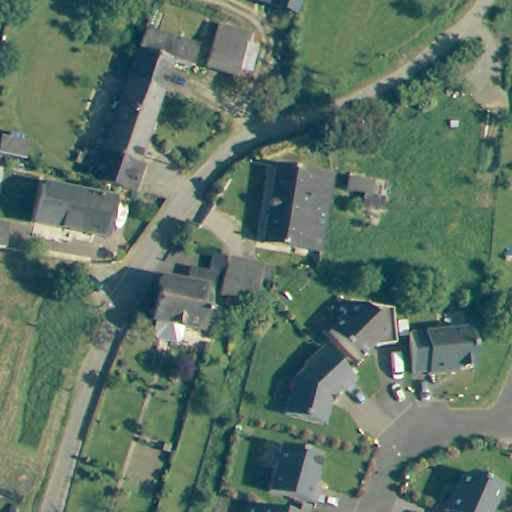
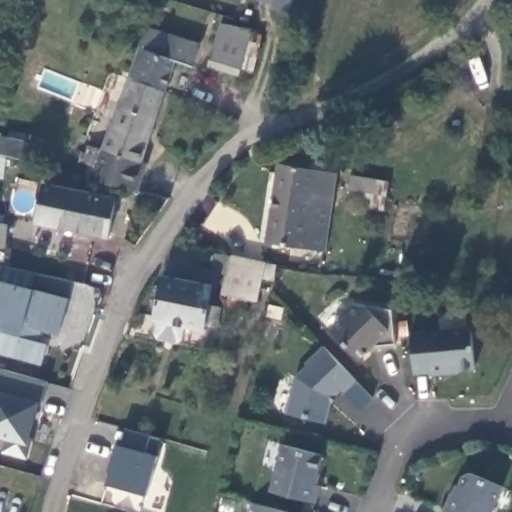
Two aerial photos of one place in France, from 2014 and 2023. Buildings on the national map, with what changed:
unchanged [(293,12),(267,4),(253,0),(298,0),(297,3),(293,12)]
unchanged [(224,24),(235,26),(255,31),(241,73),(211,66),(224,24)]
unchanged [(149,28),(199,43),(195,62),(179,58),(142,49),(149,28)]
unchanged [(142,49),(179,58),(167,92),(131,80),(142,49)]
unchanged [(102,183),(96,182),(101,167),(95,165),(98,155),(106,157),(131,80),(167,92),(145,160),(151,162),(145,179),(140,193),(102,183)]
unchanged [(4,137),(27,140),(27,143),(24,159),(1,154),(4,137)]
unchanged [(274,168),(288,170),(289,164),(300,165),(298,172),(335,177),(323,252),(265,242),(274,168)]
unchanged [(44,183),(114,199),(106,233),(36,217),(44,183)]
unchanged [(2,249),(0,249),(0,224),(8,226),(2,249)]
unchanged [(212,270),(215,252),(229,255),(263,261),(257,300),(252,299),(248,299),(223,295),(227,272),(212,270)]
unchanged [(176,344),(155,340),(151,335),(154,320),(151,320),(160,276),(191,282),(194,271),(215,275),(212,287),(209,304),(220,306),(215,327),(204,325),(202,330),(184,327),(181,341),(176,344)]
new [(40,330),(37,341),(48,344),(42,365),(0,353),(0,281),(32,289),(69,299),(60,335),(40,330)]
unchanged [(351,357),(323,328),(338,314),(335,310),(338,307),(346,299),(386,306),(389,341),(365,344),(351,357)]
unchanged [(464,327),(468,331),(472,367),(445,370),(445,373),(427,375),(426,372),(411,373),(407,333),(464,327)]
unchanged [(293,374),(305,363),(303,361),(322,344),(353,377),(341,389),(338,386),(330,395),(322,420),(284,410),(293,374)]
new [(28,459),(1,452),(5,439),(0,438),(0,370),(48,383),(28,459)]
new [(155,455),(158,456),(147,496),(106,484),(117,444),(120,445),(125,429),(161,439),(155,455)]
unchanged [(317,449),(310,479),(316,480),(311,498),(266,487),(278,439),(317,449)]
unchanged [(448,510),(442,507),(448,490),(452,491),(460,471),(467,468),(499,480),(487,512),(447,512),(448,510)]
unchanged [(250,504),(250,505),(278,512),(248,512),(250,504)]

